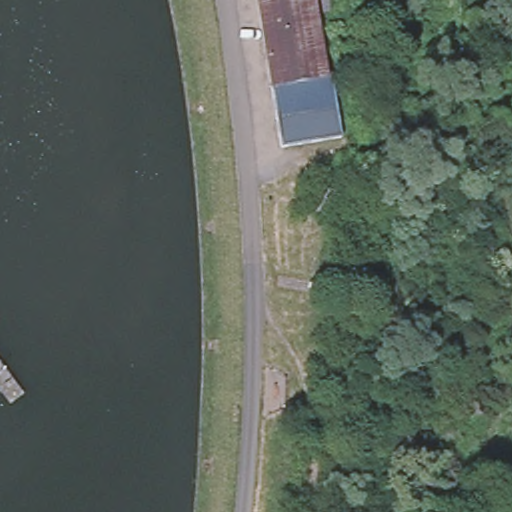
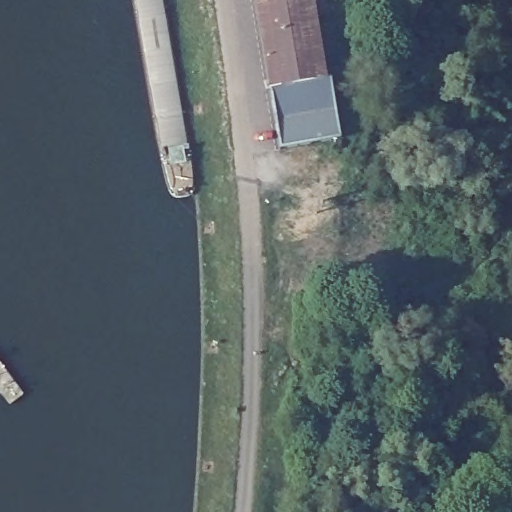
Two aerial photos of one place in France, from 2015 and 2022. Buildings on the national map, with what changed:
unchanged [(317,15),(327,79),(272,90),(257,0),(330,0),(332,12),(317,15)]
unchanged [(272,90),(327,79),(331,79),(341,141),(326,144),(282,150),(272,90)]

